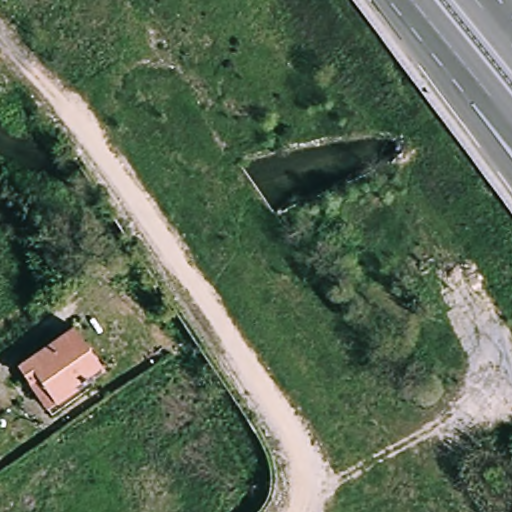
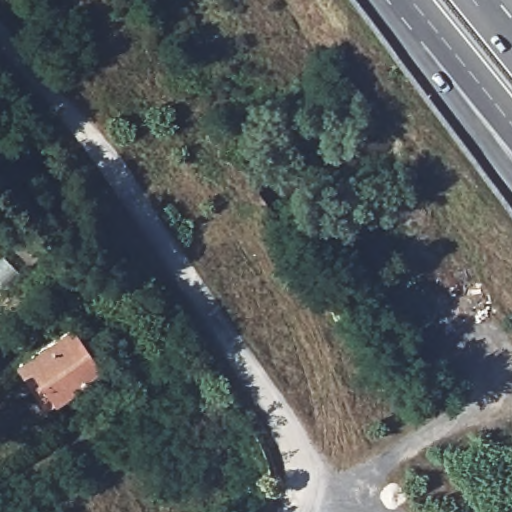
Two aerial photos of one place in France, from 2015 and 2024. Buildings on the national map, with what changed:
unchanged [(38,377),(28,384),(18,367),(75,330),(103,372),(55,404),(38,377)]

